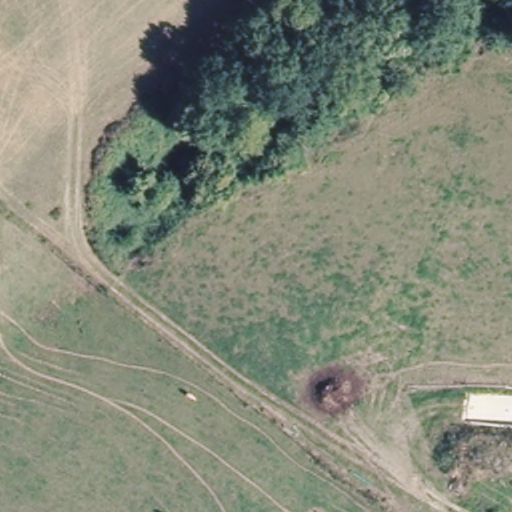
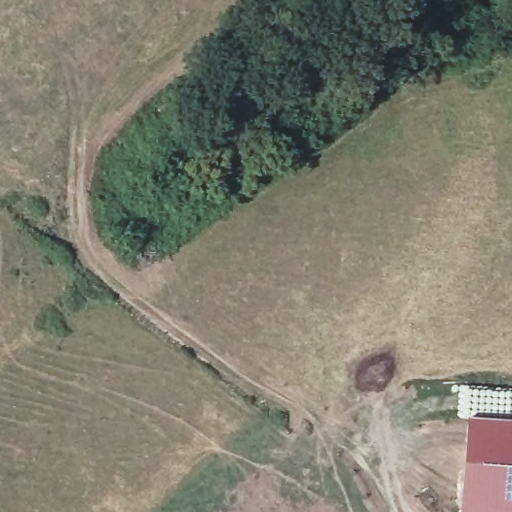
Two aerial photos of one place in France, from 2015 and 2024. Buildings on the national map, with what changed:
new [(468,420),(512,423),(512,512),(461,512),(468,420)]

